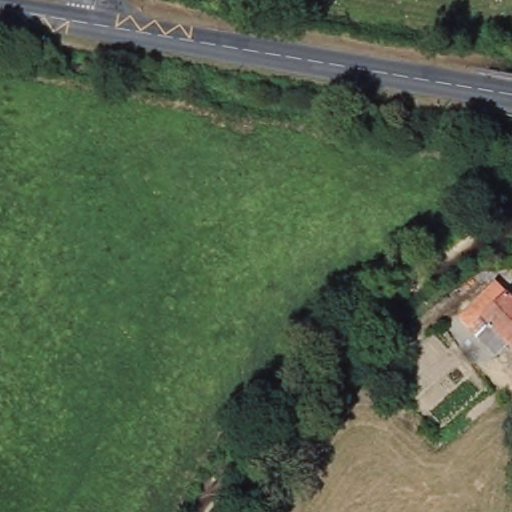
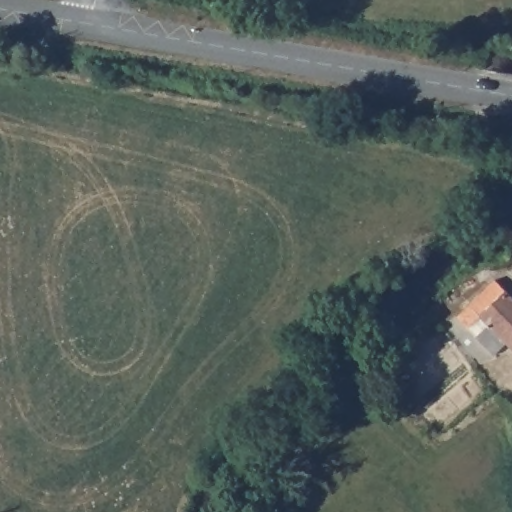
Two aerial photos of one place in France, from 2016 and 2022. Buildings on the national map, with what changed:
unchanged [(501,279),(512,291),(512,346),(501,357),(484,338),(474,327),(465,317),(501,279)]

